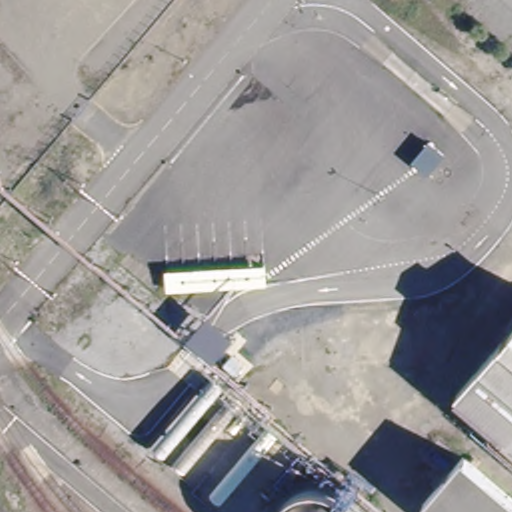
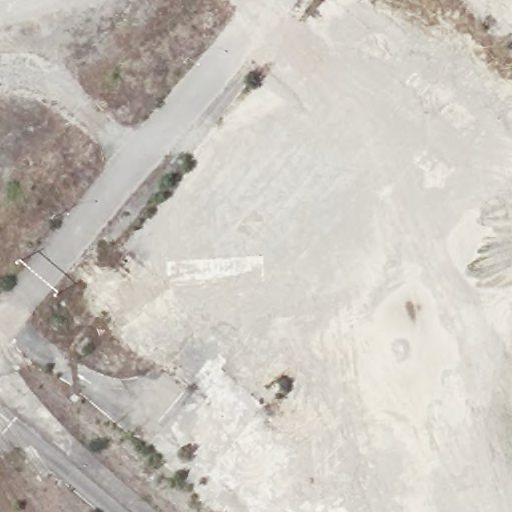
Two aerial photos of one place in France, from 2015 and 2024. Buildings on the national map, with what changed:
demolished [(512,319),(512,443),(451,392),(512,319)]
demolished [(512,512),(434,512),(425,504),(463,458),(512,499),(512,512)]

